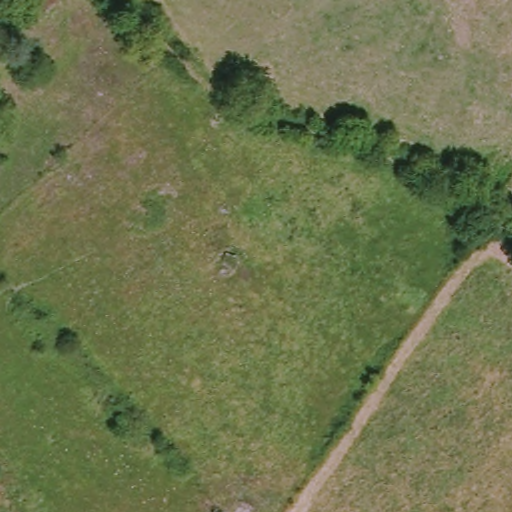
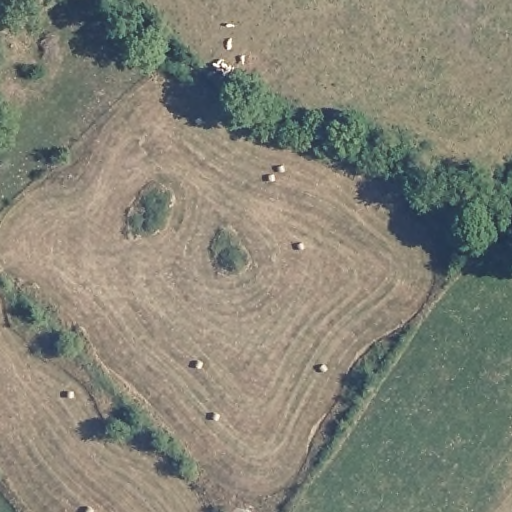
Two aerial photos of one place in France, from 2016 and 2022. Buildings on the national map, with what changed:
[]

